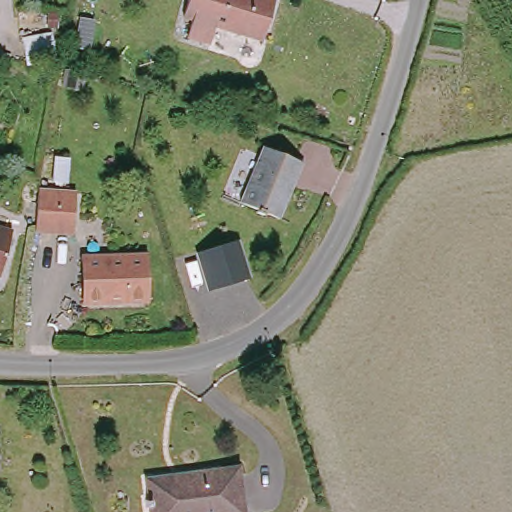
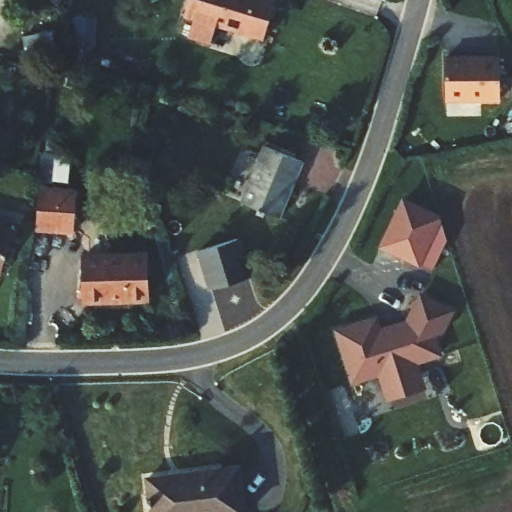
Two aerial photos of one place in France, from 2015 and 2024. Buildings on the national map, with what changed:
unchanged [(214,22),(207,42),(187,35),(196,13),(184,9),(187,0),(276,0),(259,40),(214,22)]
unchanged [(53,37),(53,40),(50,55),(29,50),(22,49),(25,30),(53,37)]
new [(457,50),(457,52),(468,52),(468,50),(488,49),(489,91),(435,94),(434,51),(457,50)]
unchanged [(304,157),(299,172),(296,171),(284,214),(245,201),(261,145),(304,157)]
unchanged [(76,190),(70,229),(35,222),(43,184),(76,190)]
new [(428,209),(438,219),(445,244),(431,272),(378,247),(402,196),(428,209)]
unchanged [(12,229),(0,275),(0,225),(12,229)]
unchanged [(238,240),(248,277),(208,288),(196,252),(238,240)]
unchanged [(149,256),(148,302),(88,300),(88,255),(149,256)]
new [(381,392),(379,381),(375,367),(347,375),(331,323),(370,311),(375,328),(399,322),(416,290),(449,307),(437,331),(430,332),(435,351),(411,357),(414,371),(418,383),(381,392)]
unchanged [(238,468),(240,512),(147,512),(144,478),(238,468)]

